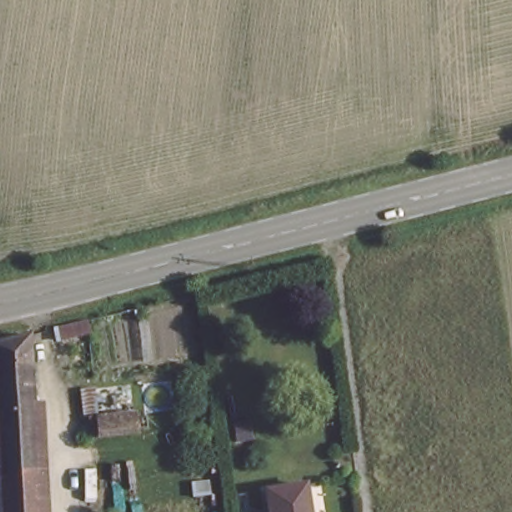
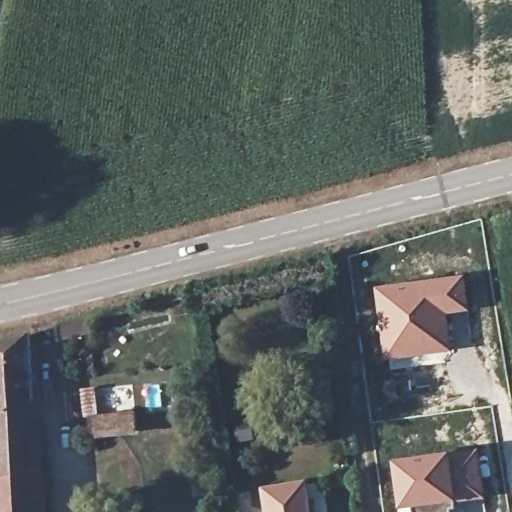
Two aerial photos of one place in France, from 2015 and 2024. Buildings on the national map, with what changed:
new [(466,274),(472,312),(451,316),(454,352),(385,362),(374,287),(466,274)]
unchanged [(0,349),(29,342),(34,456),(0,458),(0,349)]
unchanged [(89,440),(84,395),(133,386),(139,435),(89,440)]
new [(477,447),(487,500),(461,503),(454,451),(477,447)]
new [(454,451),(461,503),(452,505),(397,510),(393,460),(454,451)]
unchanged [(1,512),(0,492),(0,458),(34,456),(38,512),(1,512)]
unchanged [(268,512),(264,488),(308,482),(312,512),(268,512)]
new [(453,512),(397,512),(397,510),(452,505),(453,512)]

